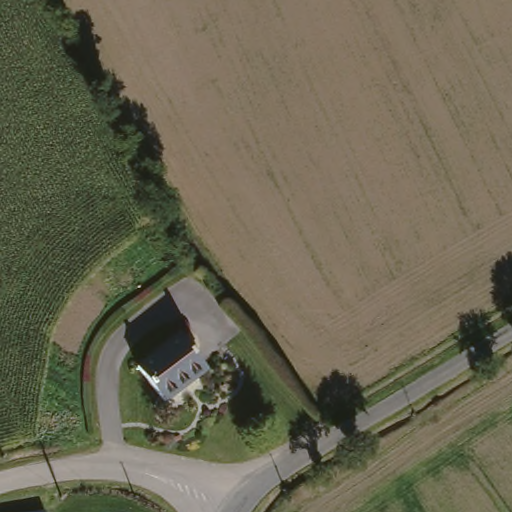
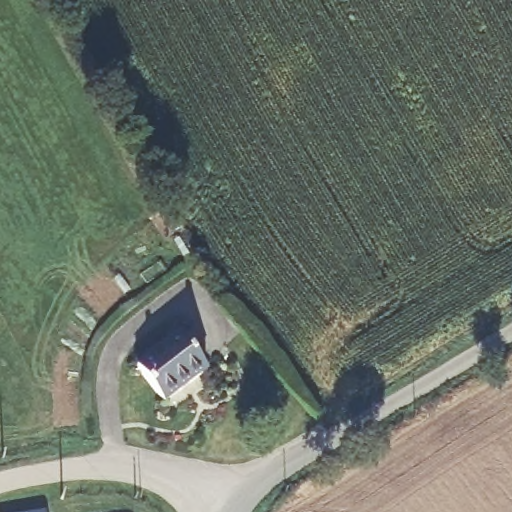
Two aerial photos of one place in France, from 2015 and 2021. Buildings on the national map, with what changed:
unchanged [(177,335),(206,368),(164,401),(136,367),(177,335)]
unchanged [(53,512),(18,512),(52,505),(53,512)]

